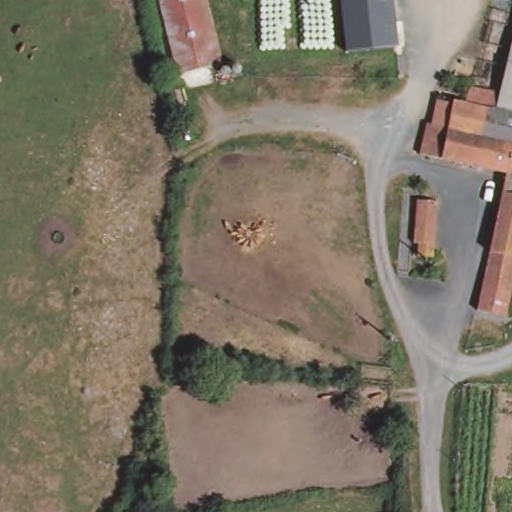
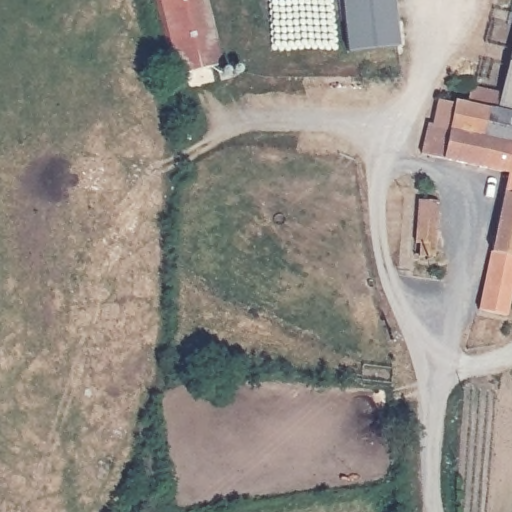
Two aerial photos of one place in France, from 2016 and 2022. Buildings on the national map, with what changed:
unchanged [(160,0),(211,0),(230,62),(204,70),(184,75),(160,0)]
unchanged [(346,51),(340,0),(393,0),(398,46),(346,51)]
unchanged [(512,61),(512,119),(500,117),(505,91),(512,61)]
unchanged [(452,124),(457,100),(470,103),(474,87),(505,91),(500,117),(512,119),(512,198),(506,197),(510,173),(427,154),(435,121),(452,124)]
unchanged [(512,198),(512,320),(482,316),(506,197),(512,198)]
unchanged [(416,214),(444,213),(445,259),(450,260),(452,264),(451,269),(448,272),(432,270),(433,257),(426,256),(426,242),(415,242),(416,216),(416,214)]

